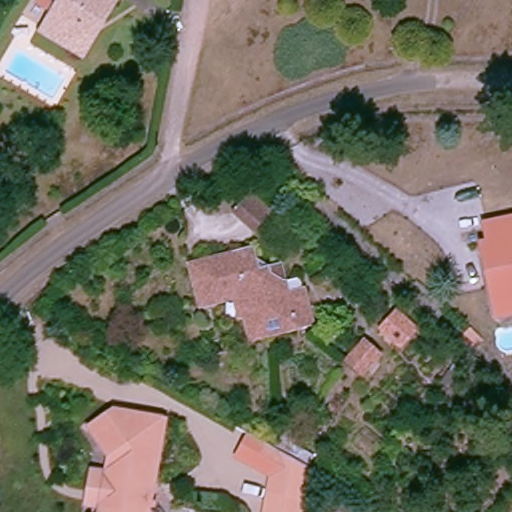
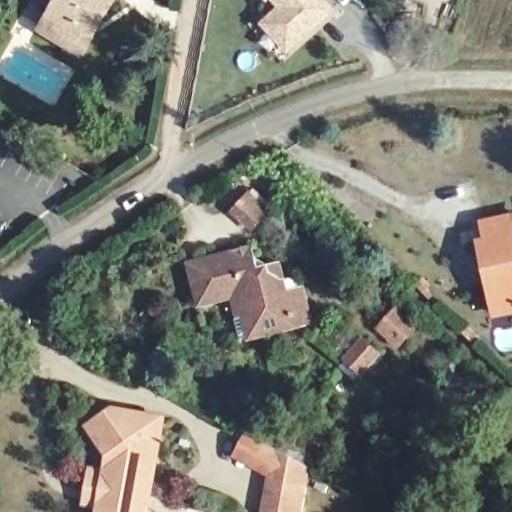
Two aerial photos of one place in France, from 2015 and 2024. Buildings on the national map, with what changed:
unchanged [(42,39),(52,20),(35,10),(41,0),(116,0),(80,59),(42,39)]
new [(277,10),(269,0),(325,0),(335,11),(286,55),(261,25),(277,10)]
unchanged [(267,215),(255,226),(237,207),(249,196),(267,215)]
unchanged [(477,244),(487,240),(483,225),(512,218),(512,315),(493,320),(477,244)]
unchanged [(251,308),(257,306),(254,297),(235,295),(235,290),(221,293),(221,300),(202,305),(192,266),(240,251),(252,248),(256,265),(268,263),(278,278),(287,291),(306,286),(313,316),(258,333),(251,308)]
unchanged [(95,506),(80,502),(89,469),(105,473),(109,456),(95,437),(118,418),(170,433),(149,512),(93,512),(95,506)]
unchanged [(302,512),(264,512),(274,477),(242,459),(254,438),(265,445),(281,453),(313,472),(302,512)]

